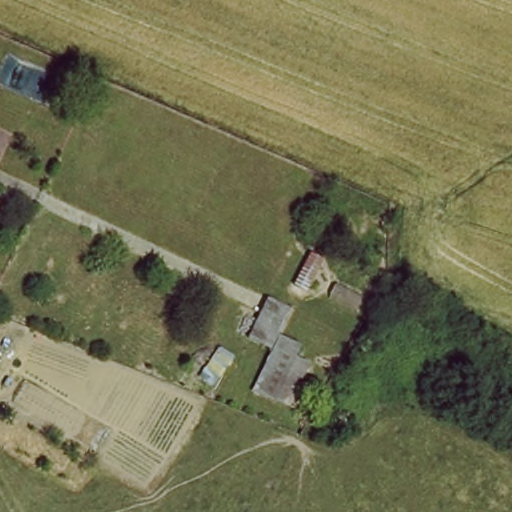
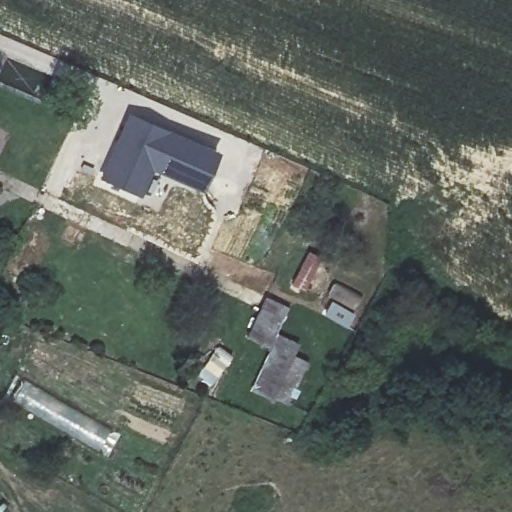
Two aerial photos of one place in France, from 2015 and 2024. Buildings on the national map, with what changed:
new [(153,170),(141,197),(99,178),(129,111),(222,151),(203,192),(153,170)]
unchanged [(266,347),(244,336),(264,297),(288,308),(278,332),(299,342),(294,355),(306,362),(287,404),(249,387),(266,347)]

